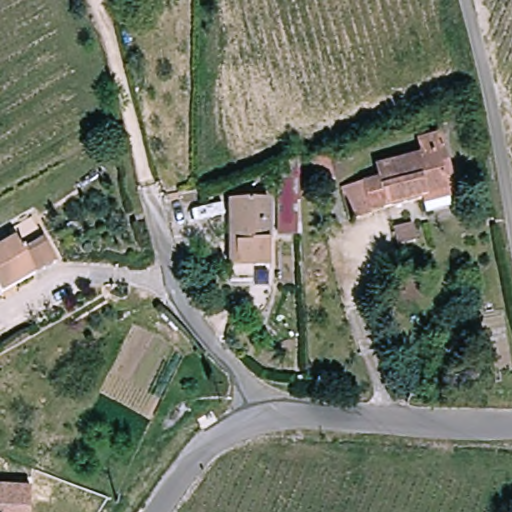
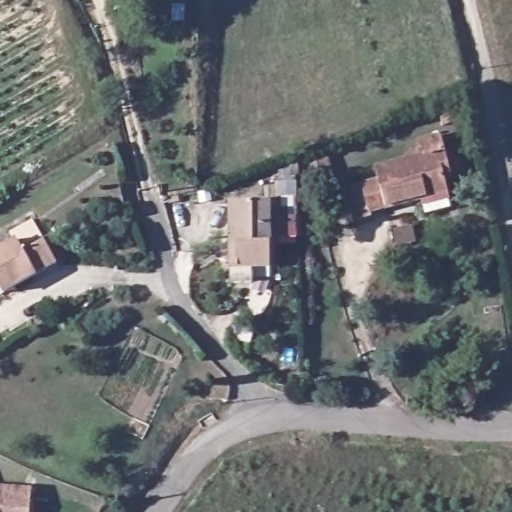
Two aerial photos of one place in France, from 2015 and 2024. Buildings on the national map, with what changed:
unchanged [(442,132),(440,117),(462,112),(465,127),(442,132)]
unchanged [(454,181),(444,183),(448,204),(376,221),(376,225),(352,230),(345,194),(380,186),(378,176),(422,166),(420,152),(447,146),(454,181)]
unchanged [(230,286),(230,250),(229,204),(273,203),(273,270),(257,269),(257,286),(230,286)]
unchanged [(0,280),(0,247),(15,239),(10,229),(32,215),(59,261),(36,275),(2,295),(0,291),(0,280)]
unchanged [(0,512),(0,488),(30,490),(29,512),(0,512)]

